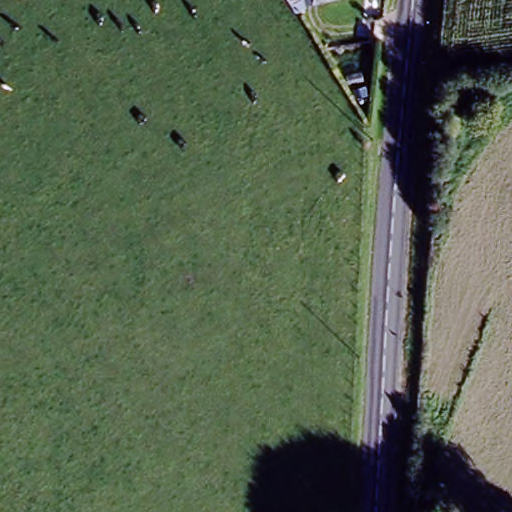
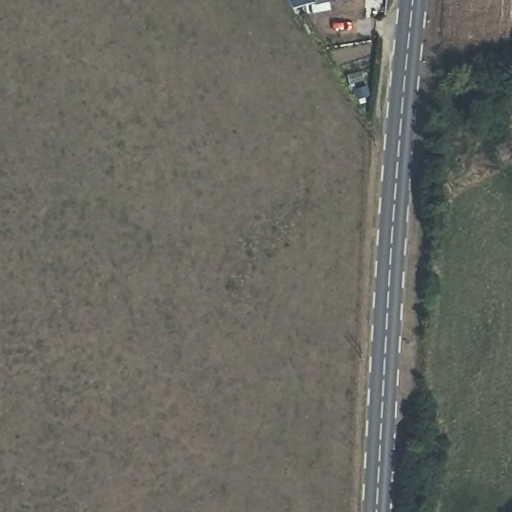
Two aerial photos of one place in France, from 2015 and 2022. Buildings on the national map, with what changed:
unchanged [(317,0),(337,0),(332,1),(317,3),(317,0)]

